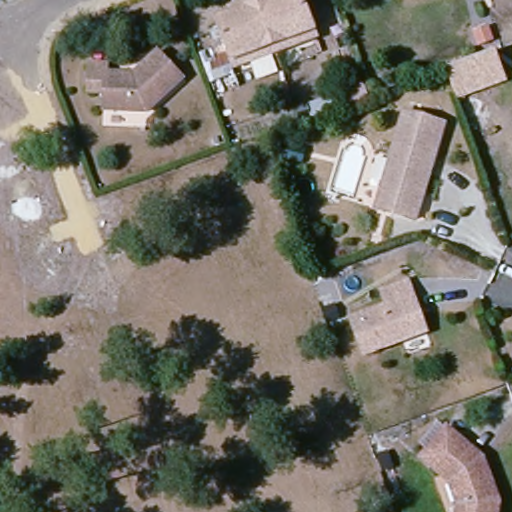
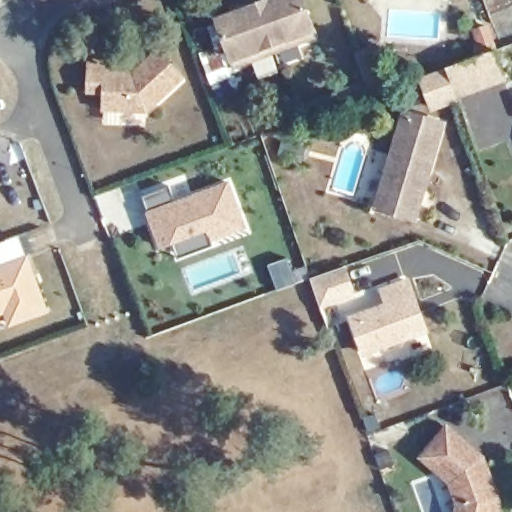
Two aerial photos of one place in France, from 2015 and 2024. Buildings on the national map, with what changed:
unchanged [(240,0),(302,0),(314,34),(232,63),(215,15),(231,10),(229,4),(240,0)]
unchanged [(188,83),(147,116),(102,109),(105,93),(86,89),(89,65),(107,68),(106,74),(139,79),(150,71),(146,68),(164,53),(188,83)]
unchanged [(505,82),(458,99),(449,72),(495,54),(505,82)]
unchanged [(402,109),(442,120),(417,218),(377,205),(402,109)]
new [(220,239),(222,244),(179,260),(177,254),(173,244),(162,248),(143,195),(171,185),(177,202),(231,183),(245,224),(247,229),(220,239)]
new [(48,314),(10,328),(4,314),(0,315),(0,266),(27,257),(48,314)]
unchanged [(349,322),(388,308),(383,292),(406,283),(412,299),(425,335),(418,339),(362,358),(349,322)]
unchanged [(437,472),(425,462),(434,454),(454,432),(485,461),(500,502),(499,512),(459,512),(450,486),(437,472)]

